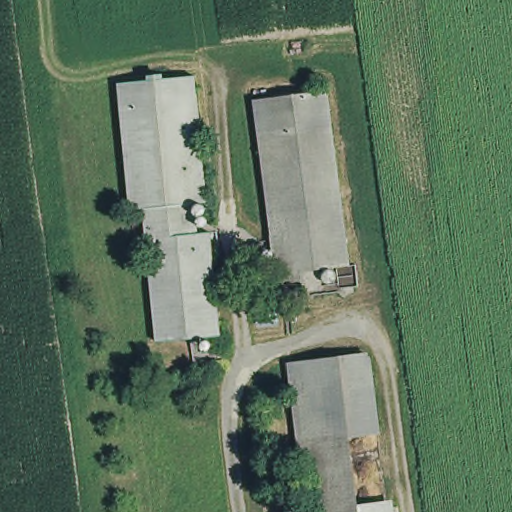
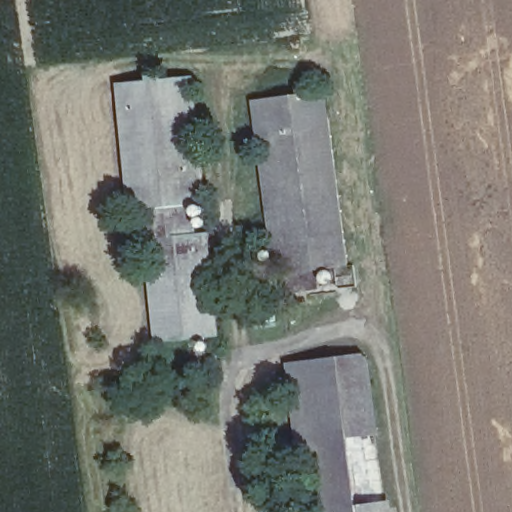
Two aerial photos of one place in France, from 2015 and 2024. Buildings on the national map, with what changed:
unchanged [(226,335),(160,339),(147,202),(131,204),(120,76),(201,70),(226,335)]
unchanged [(351,260),(326,263),(328,285),(261,292),(256,260),(273,260),(259,94),(331,87),(351,260)]
unchanged [(292,359),(373,351),(381,427),(359,431),(368,512),(307,512),(292,359)]

